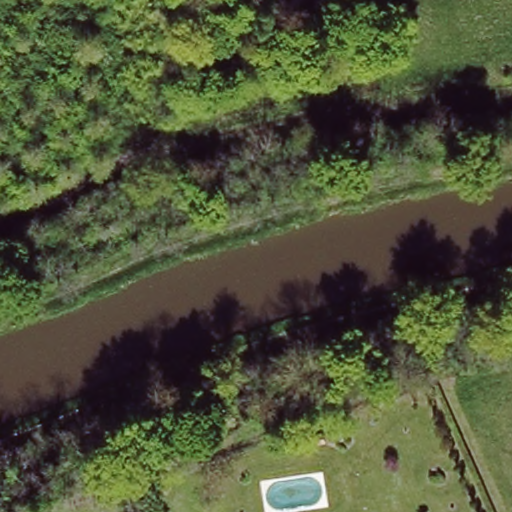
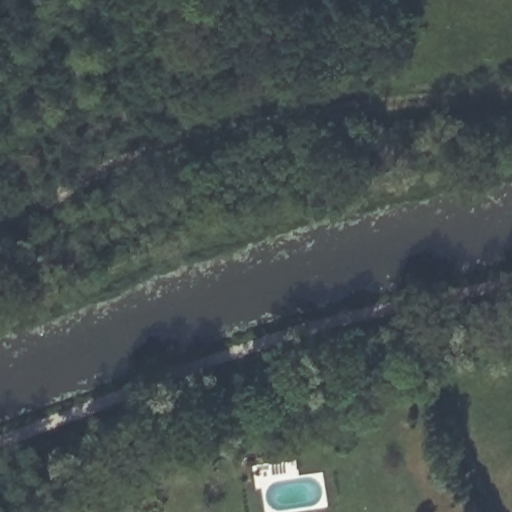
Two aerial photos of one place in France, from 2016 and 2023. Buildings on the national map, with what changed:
unchanged [(196,0),(197,7),(182,11),(181,0),(196,0)]
unchanged [(357,24),(370,15),(394,66),(376,72),(357,24)]
unchanged [(194,70),(212,65),(215,85),(200,88),(194,70)]

